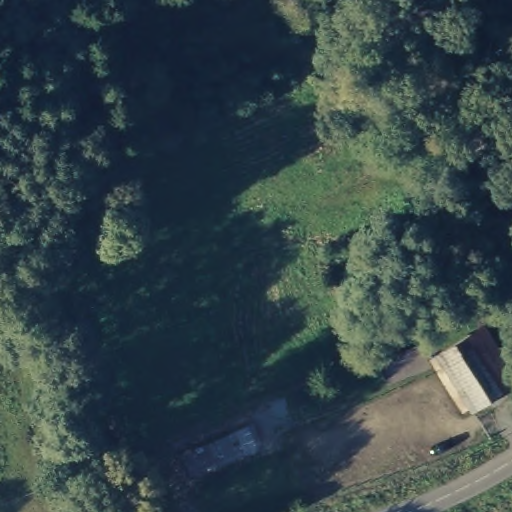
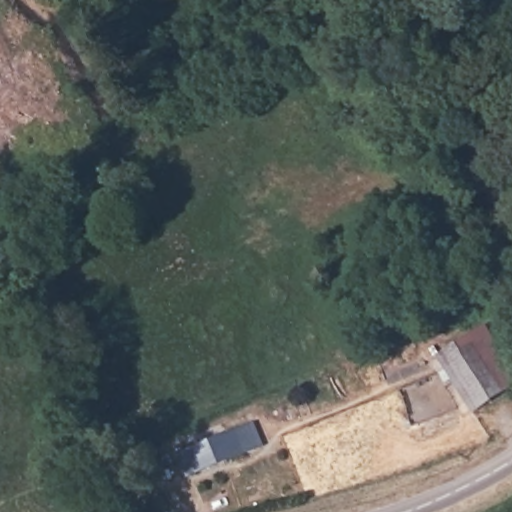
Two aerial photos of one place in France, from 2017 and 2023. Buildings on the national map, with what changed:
unchanged [(472,415),(436,356),(487,324),(512,366),(512,389),(472,415)]
unchanged [(188,454),(197,451),(244,433),(252,452),(205,471),(196,474),(188,454)]

